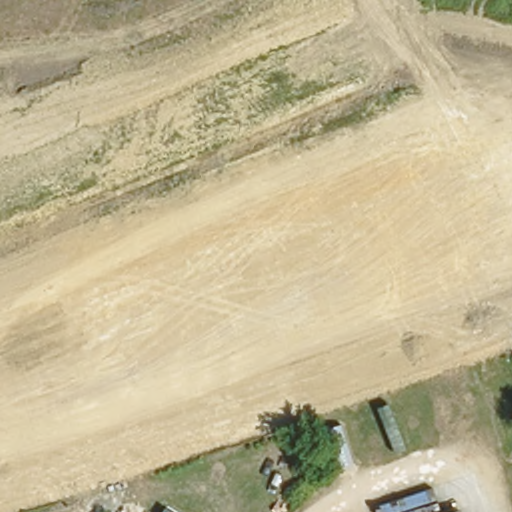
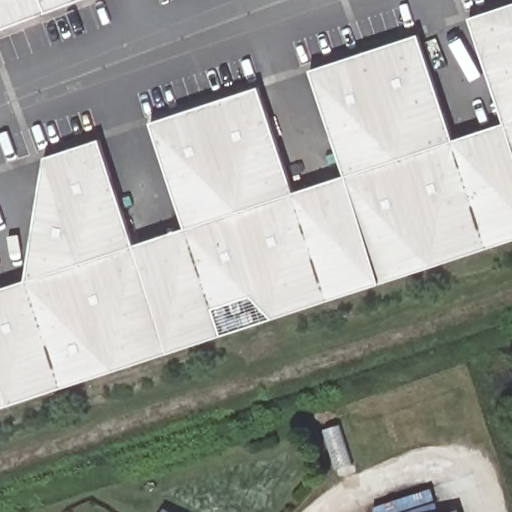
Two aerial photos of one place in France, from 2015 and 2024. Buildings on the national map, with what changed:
new [(0,31),(0,0),(82,0),(0,31)]
new [(28,280),(46,157),(100,139),(135,245),(186,227),(152,122),(260,87),(294,193),(345,175),(311,70),(420,35),(453,140),(505,122),(471,17),(512,4),(512,240),(0,408),(0,289),(28,280)]
unchanged [(390,452),(372,404),(386,396),(405,445),(390,452)]
unchanged [(342,418),(354,458),(335,463),(325,423),(342,418)]
unchanged [(471,512),(450,512),(448,507),(467,502),(471,512)]
new [(171,512),(160,512),(164,507),(171,512)]
unchanged [(435,512),(448,507),(450,512),(435,512)]

